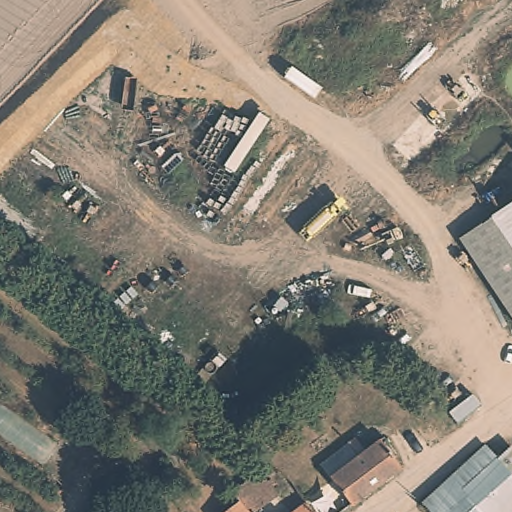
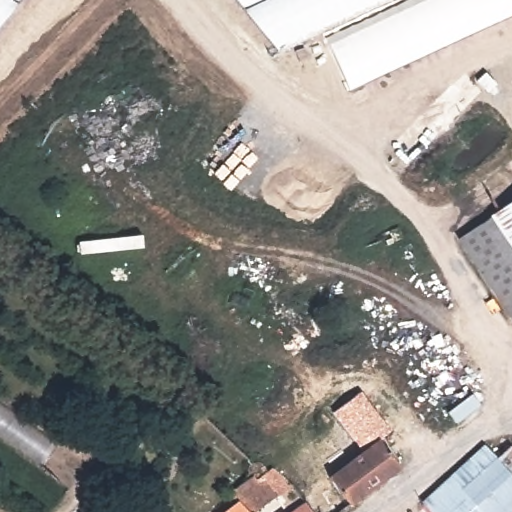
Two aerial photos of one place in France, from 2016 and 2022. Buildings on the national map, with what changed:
new [(0,26),(0,0),(21,0),(0,26)]
new [(273,49),(233,0),(379,0),(273,49)]
new [(428,0),(512,0),(512,16),(345,91),(325,46),(428,0)]
unchanged [(476,228),(512,203),(512,279),(476,228)]
unchanged [(351,504),(322,464),(355,438),(365,451),(385,437),(400,456),(396,460),(401,467),(351,504)]
unchanged [(428,512),(419,503),(482,446),(493,458),(506,447),(512,452),(512,465),(505,471),(512,479),(512,510),(510,512),(428,512)]
unchanged [(230,492),(252,477),(249,467),(256,463),(265,464),(271,471),(274,470),(287,485),(277,494),(255,512),(224,512),(239,501),(230,492)]
unchanged [(314,512),(296,512),(308,503),(314,512)]

